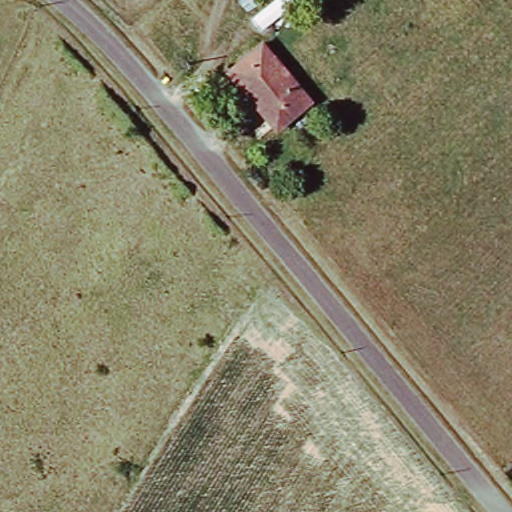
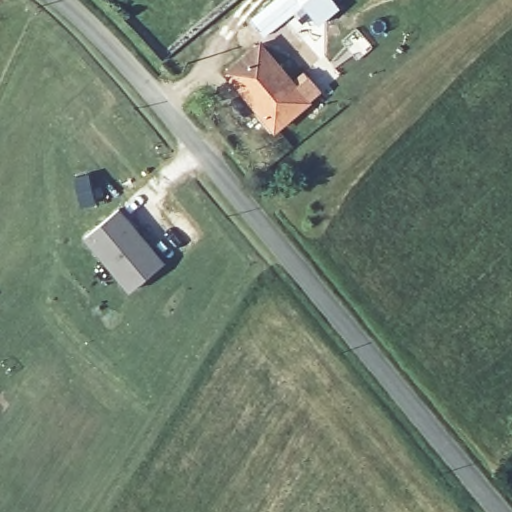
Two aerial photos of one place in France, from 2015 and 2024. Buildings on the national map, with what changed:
unchanged [(275,128),(226,69),(259,42),(310,101),(275,128)]
new [(161,264),(132,288),(87,234),(116,210),(161,264)]

